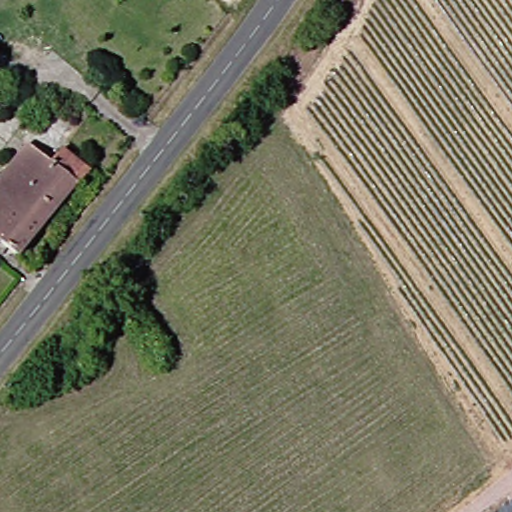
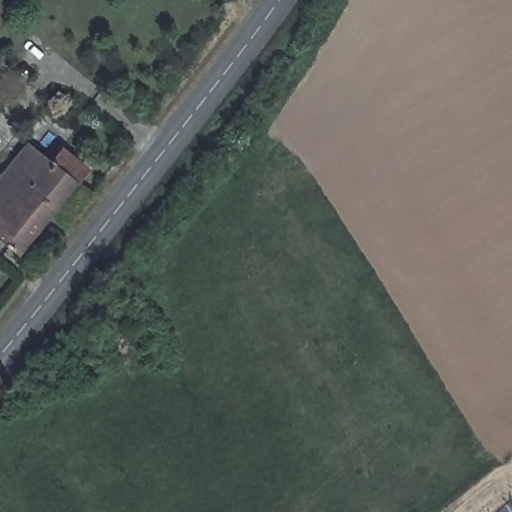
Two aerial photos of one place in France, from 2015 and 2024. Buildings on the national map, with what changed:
unchanged [(40,137),(61,156),(69,147),(94,169),(65,205),(15,166),(40,137)]
unchanged [(23,252),(0,233),(0,183),(15,166),(65,205),(54,217),(23,252)]
unchanged [(89,357),(78,368),(66,356),(77,344),(89,357)]

